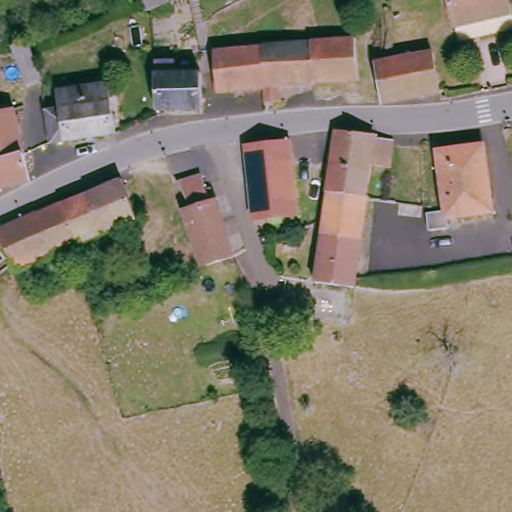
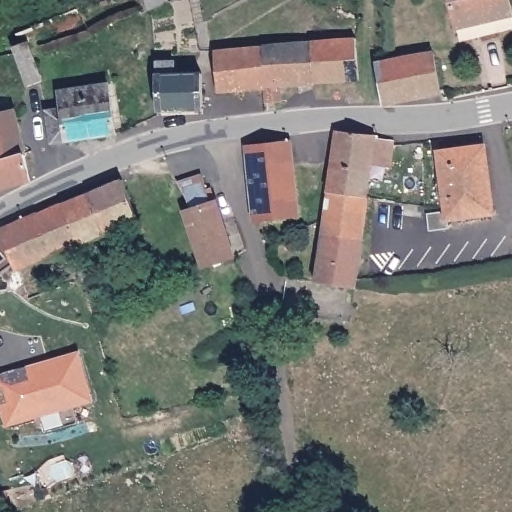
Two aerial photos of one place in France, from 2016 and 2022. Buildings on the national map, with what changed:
unchanged [(165,0),(142,9),(139,0),(165,0)]
unchanged [(509,14),(455,26),(449,0),(506,0),(509,14)]
unchanged [(6,37),(21,32),(32,67),(33,70),(17,75),(6,37)]
unchanged [(348,35),(351,75),(308,78),(305,37),(335,35),(349,33),(348,35)]
unchanged [(305,37),(308,78),(274,80),(275,97),(258,98),(258,82),(256,42),(305,37)]
unchanged [(256,42),(258,82),(210,86),(207,47),(256,42)]
unchanged [(438,91),(381,102),(373,63),(381,61),(430,52),(438,91)]
unchanged [(172,61),(172,75),(200,74),(202,109),(156,110),(153,62),(172,61)]
unchanged [(96,76),(100,76),(105,125),(43,134),(39,104),(44,100),(52,99),(50,82),(96,76)]
unchanged [(13,108),(22,152),(0,159),(0,112),(13,108)]
unchanged [(371,133),(363,191),(326,187),(333,125),(372,129),(371,133)]
unchanged [(371,133),(390,135),(384,184),(390,183),(395,186),(396,189),(395,194),(390,197),(370,195),(363,191),(371,133)]
unchanged [(287,141),(295,215),(253,220),(246,146),(287,141)]
unchanged [(480,147),(489,212),(445,219),(436,153),(480,147)]
unchanged [(27,180),(25,181),(0,188),(0,159),(22,152),(27,180)]
unchanged [(192,173),(198,189),(205,186),(227,251),(197,261),(178,206),(182,205),(180,196),(170,180),(192,173)]
unchanged [(120,179),(133,219),(15,268),(11,270),(10,265),(0,237),(0,228),(120,179)]
unchanged [(361,206),(354,282),(315,277),(320,242),(326,187),(363,191),(361,206)]
unchanged [(512,237),(510,237),(507,225),(512,224),(512,237)]
new [(79,352),(94,402),(7,428),(0,403),(0,375),(79,352)]

